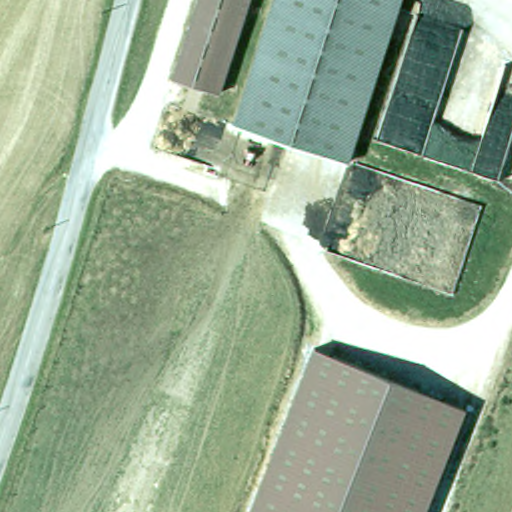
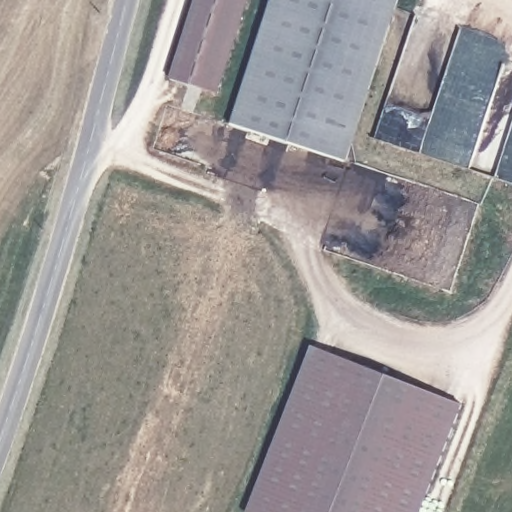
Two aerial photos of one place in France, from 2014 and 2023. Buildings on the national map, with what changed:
unchanged [(244,0),(215,90),(170,76),(194,0),(244,0)]
unchanged [(401,0),(349,163),(235,126),(276,0),(401,0)]
unchanged [(319,347),(465,406),(423,512),(252,512),(319,347)]

